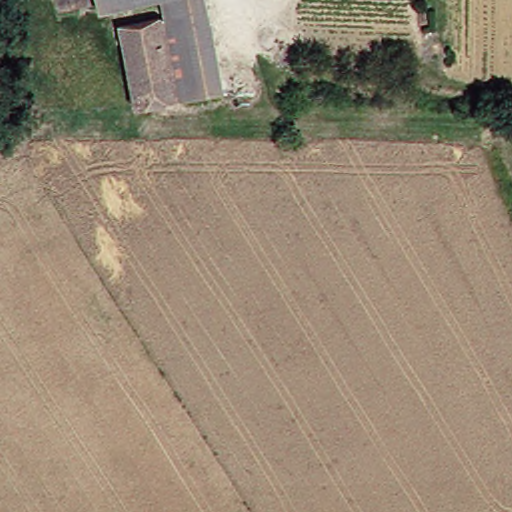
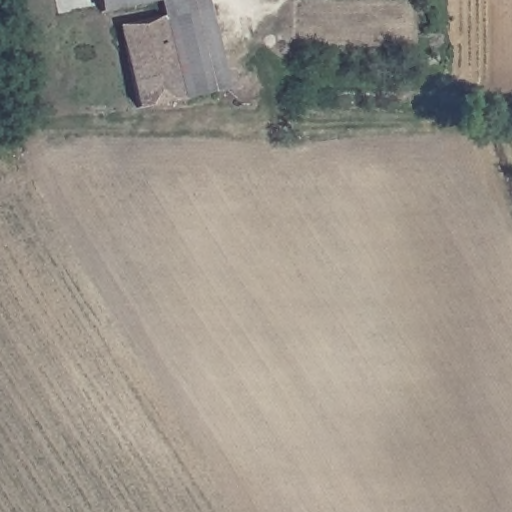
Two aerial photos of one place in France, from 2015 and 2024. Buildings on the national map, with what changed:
unchanged [(106,16),(103,0),(173,0),(174,2),(106,16)]
unchanged [(184,0),(174,2),(173,0),(184,0)]
unchanged [(149,109),(130,33),(200,18),(220,88),(149,109)]

